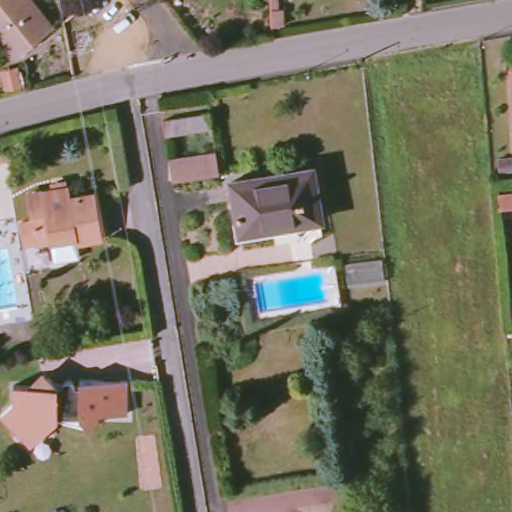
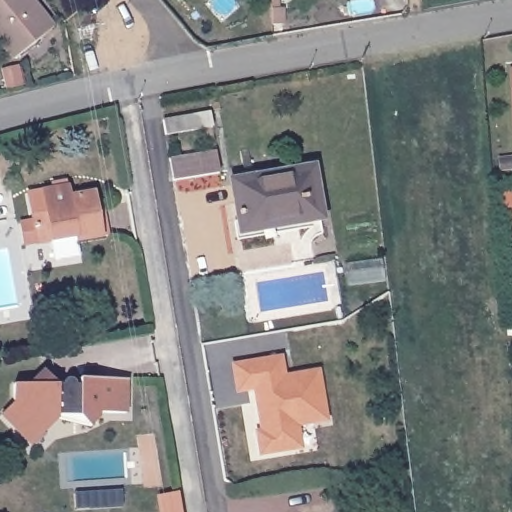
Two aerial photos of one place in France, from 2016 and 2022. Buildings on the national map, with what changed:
unchanged [(22,62),(0,38),(0,0),(32,0),(58,30),(22,62)]
unchanged [(207,117),(209,131),(161,139),(159,125),(207,117)]
unchanged [(220,152),(222,171),(176,180),(173,160),(220,152)]
unchanged [(317,163),(327,215),(300,220),(298,211),(242,220),(235,177),(317,163)]
unchanged [(62,250),(57,251),(55,239),(43,241),(37,211),(34,191),(39,190),(51,188),(59,187),(57,181),(72,178),(72,185),(75,195),(98,191),(101,208),(108,207),(114,237),(82,243),(82,246),(62,250)]
unchanged [(512,189),(512,205),(505,205),(504,190),(512,189)]
new [(327,422),(298,427),(302,449),(260,456),(255,430),(258,430),(252,392),(235,395),(230,363),(282,355),(285,375),(320,368),(327,422)]
unchanged [(22,442),(3,425),(13,414),(12,396),(30,395),(42,382),(42,381),(55,394),(60,393),(61,390),(62,388),(64,387),(67,386),(69,386),(71,388),(73,392),(76,392),(78,391),(77,385),(122,382),(125,415),(99,417),(100,422),(90,432),(82,424),(80,422),(80,419),(57,420),(58,428),(51,436),(48,439),(35,454),(22,442)]

